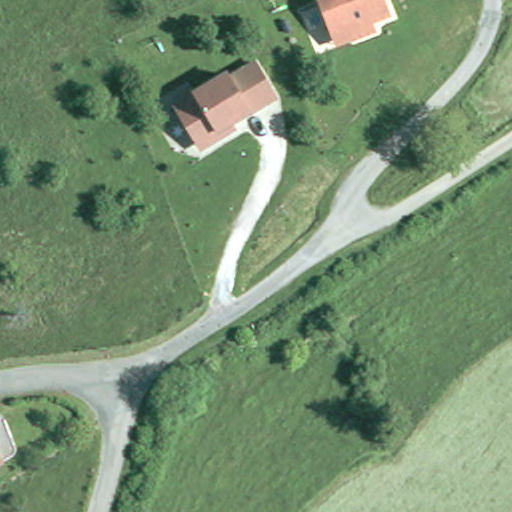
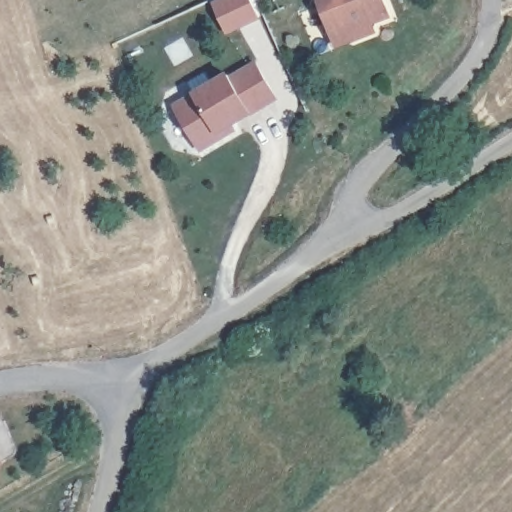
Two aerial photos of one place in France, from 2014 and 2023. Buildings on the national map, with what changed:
new [(250,0),(258,18),(226,33),(210,3),(217,0),(250,0)]
unchanged [(331,25),(322,0),(386,0),(390,11),(372,19),(375,26),(354,34),(340,40),(337,41),(331,25)]
unchanged [(224,74),(226,79),(252,64),(272,97),(213,131),(210,140),(200,146),(191,144),(170,106),(224,74)]

